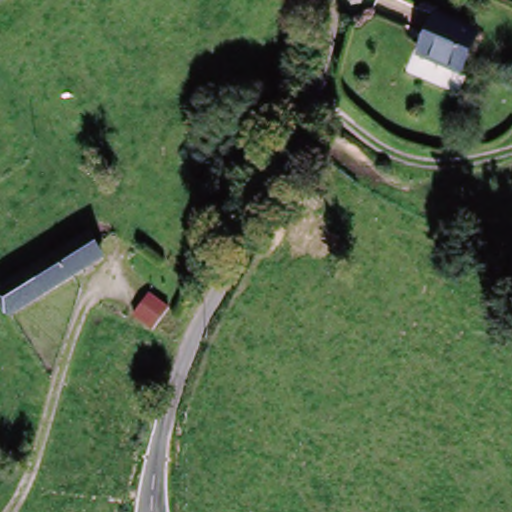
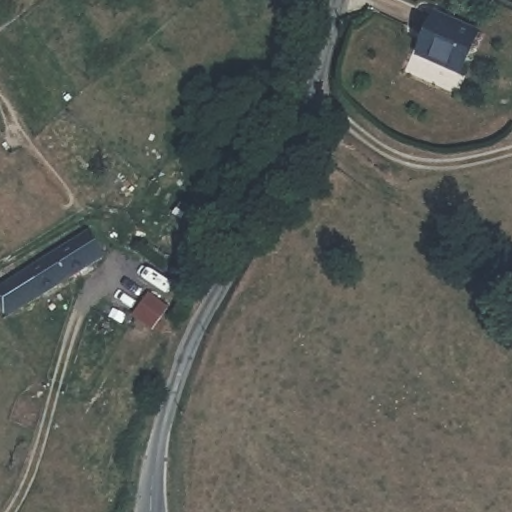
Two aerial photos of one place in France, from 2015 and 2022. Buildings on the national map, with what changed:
unchanged [(471,37),(459,75),(417,62),(430,24),(471,37)]
unchanged [(0,299),(0,288),(86,237),(102,261),(75,277),(11,317),(0,299)]

